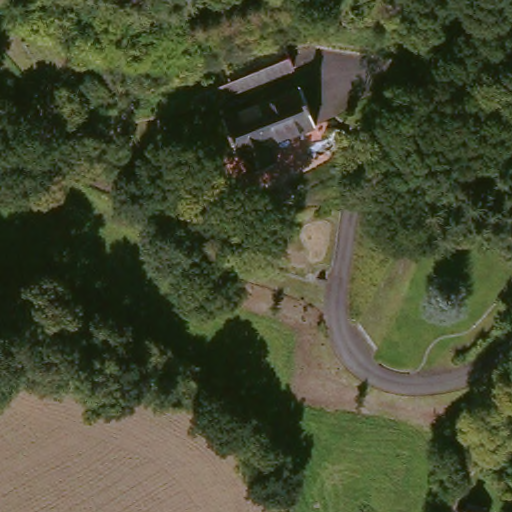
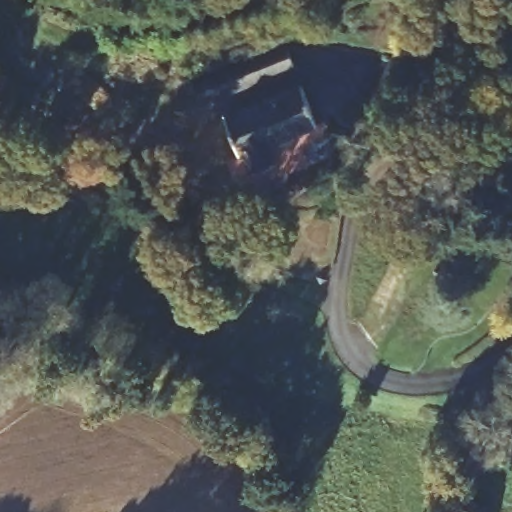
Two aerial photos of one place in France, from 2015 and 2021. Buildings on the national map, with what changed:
unchanged [(211,105),(197,82),(289,45),(300,67),(211,105)]
unchanged [(315,80),(329,117),(278,136),(285,153),(259,164),(252,147),(246,149),(237,125),(232,112),(232,110),(269,97),(315,80)]
unchanged [(468,511),(474,512),(457,512),(457,510),(457,509),(462,510),(468,511)]

